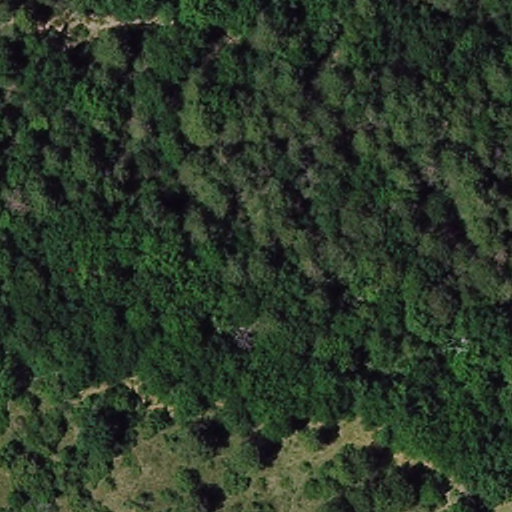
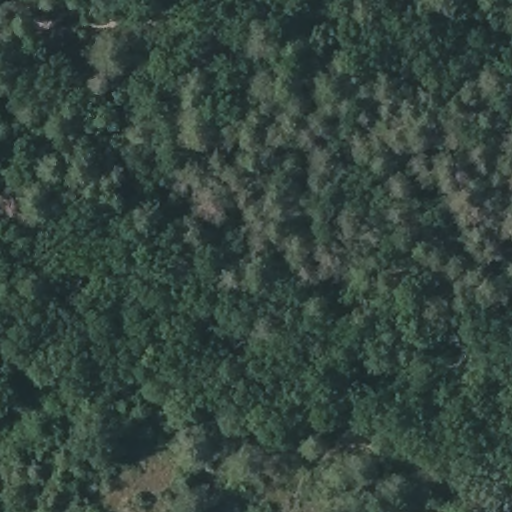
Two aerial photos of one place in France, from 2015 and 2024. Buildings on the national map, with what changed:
unchanged [(72,46),(32,40),(35,19),(75,29),(72,46)]

